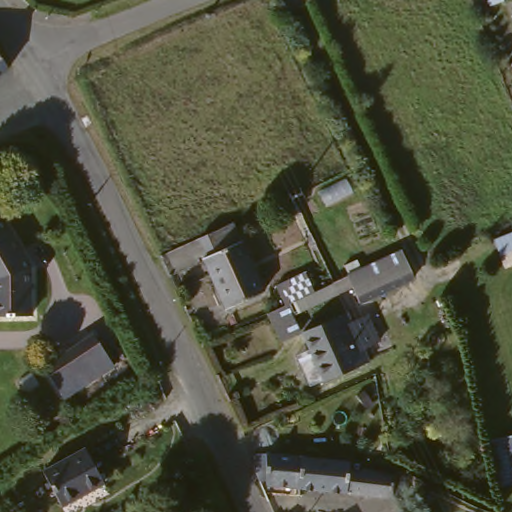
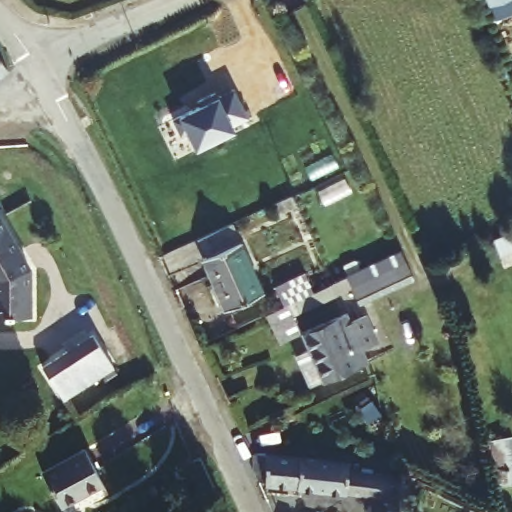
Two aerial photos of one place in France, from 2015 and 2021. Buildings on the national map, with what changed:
new [(249,118),(232,127),(235,132),(195,152),(184,132),(179,136),(171,120),(177,116),(195,106),(192,100),(215,90),(218,96),(233,89),(249,118)]
unchanged [(221,228),(257,296),(224,314),(200,270),(202,268),(190,244),(221,228)]
unchanged [(27,269),(29,318),(0,319),(0,232),(27,269)]
unchanged [(512,234),(512,256),(496,263),(489,243),(512,234)]
unchanged [(391,252),(405,279),(351,307),(342,293),(331,299),(324,286),(391,252)]
unchanged [(271,297),(298,282),(307,295),(324,286),(331,299),(282,324),(291,342),(282,347),(273,351),(257,321),(278,310),(271,297)]
unchanged [(341,320),(365,364),(320,388),(296,342),(341,320)]
unchanged [(83,340),(105,370),(55,403),(35,373),(83,340)]
unchanged [(512,449),(512,488),(494,491),(484,441),(510,436),(512,449)]
unchanged [(75,453),(93,483),(52,508),(34,479),(75,453)]
unchanged [(278,462),(279,465),(300,467),(300,495),(274,494),(273,481),(260,481),(258,462),(278,462)]
unchanged [(354,469),(354,479),(379,480),(378,490),(399,491),(399,500),(300,495),(300,467),(354,469)]

